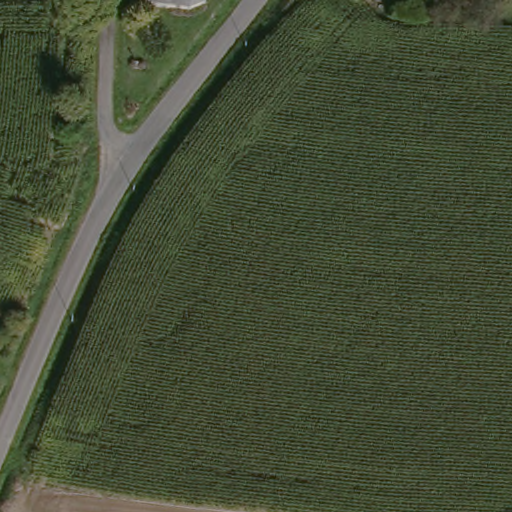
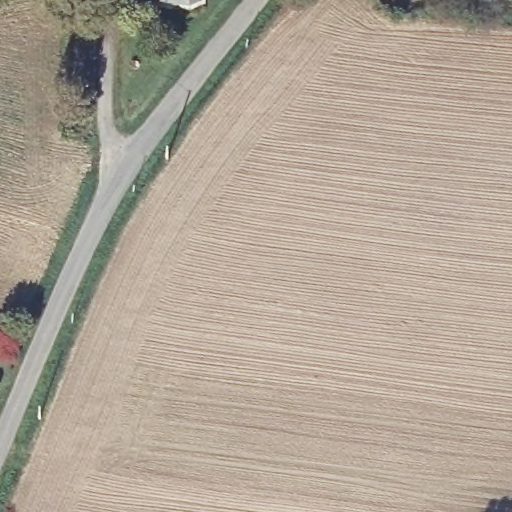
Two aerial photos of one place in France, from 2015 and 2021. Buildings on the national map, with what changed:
unchanged [(135,0),(205,0),(204,4),(188,14),(134,5),(135,0)]

